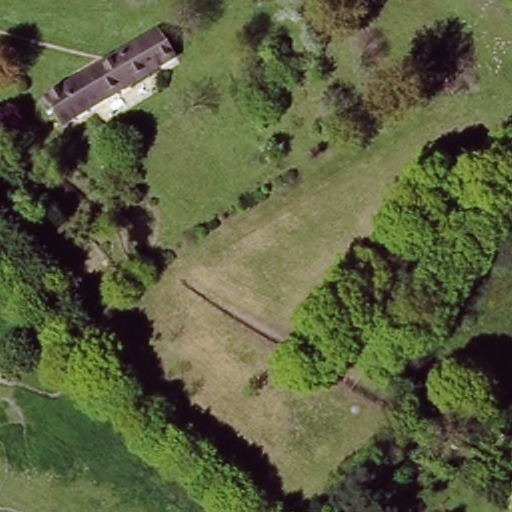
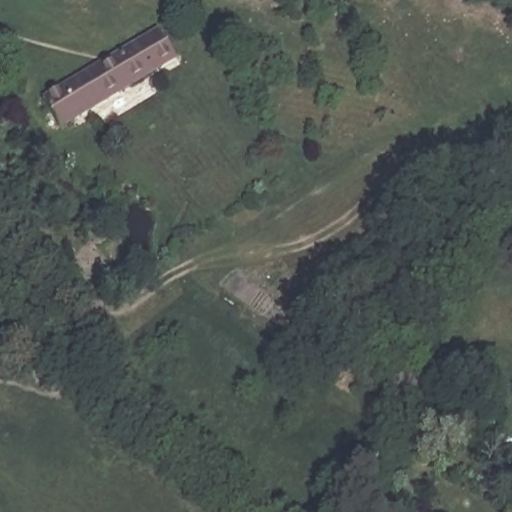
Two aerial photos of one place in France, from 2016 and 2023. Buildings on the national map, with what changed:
unchanged [(47,93),(155,28),(172,56),(60,122),(44,94),(47,93)]
unchanged [(512,150),(512,156),(509,152),(512,150)]

